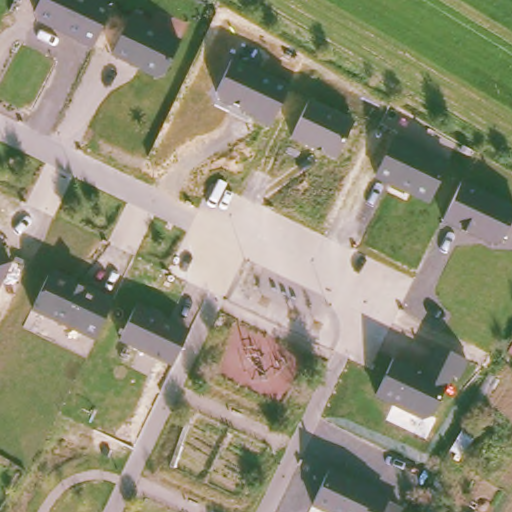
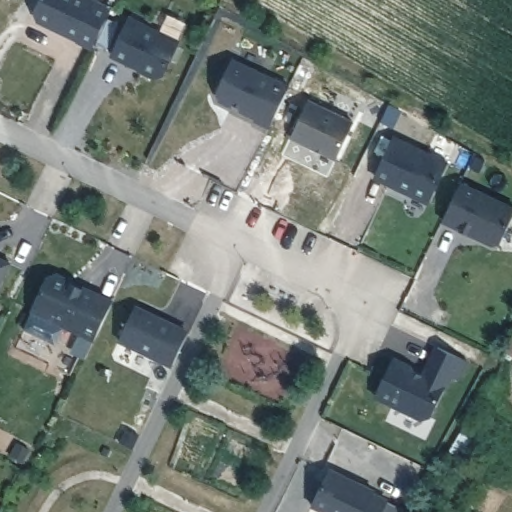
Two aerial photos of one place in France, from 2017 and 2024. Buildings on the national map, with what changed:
unchanged [(80,40),(80,38),(65,31),(66,29),(53,22),(52,25),(38,19),(36,11),(42,0),(98,0),(114,7),(95,46),(80,40)]
unchanged [(165,75),(159,77),(140,69),(141,66),(132,62),(132,63),(114,54),(132,16),(181,40),(165,75)]
unchanged [(253,121),(255,118),(238,110),(239,106),(234,104),(231,108),(219,102),(217,93),(232,59),(288,84),(270,128),(253,121)]
unchanged [(311,100),(357,123),(340,159),(293,137),(311,100)]
unchanged [(375,179),(395,136),(448,162),(429,204),(375,179)]
unchanged [(461,182),(512,206),(512,219),(500,242),(492,245),(441,223),(461,182)]
unchanged [(0,287),(0,255),(12,261),(0,287)]
unchanged [(47,277),(54,275),(110,300),(92,340),(31,311),(47,277)]
unchanged [(136,306),(190,330),(172,367),(118,342),(136,306)]
unchanged [(465,358),(430,416),(424,418),(375,395),(392,357),(412,366),(412,369),(425,375),(429,365),(427,364),(436,345),(465,358)]
unchanged [(512,345),(512,357),(507,354),(512,345)]
unchanged [(488,387),(495,390),(488,402),(482,399),(488,387)]
unchanged [(110,451),(106,458),(100,455),(102,448),(110,451)]
unchanged [(390,497),(388,501),(403,507),(401,512),(320,512),(311,508),(330,470),(390,497)]
unchanged [(431,490),(435,491),(430,498),(435,500),(430,507),(424,503),(431,490)]

